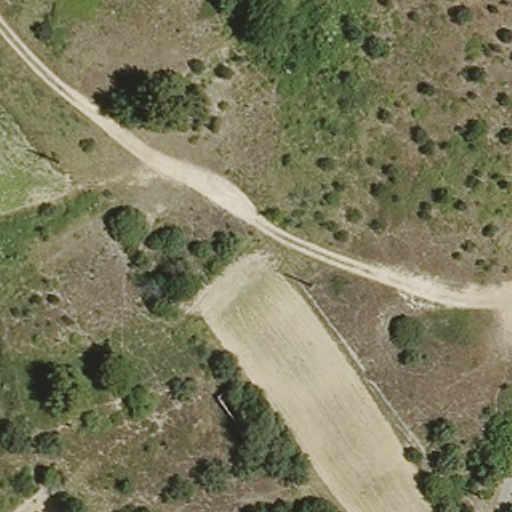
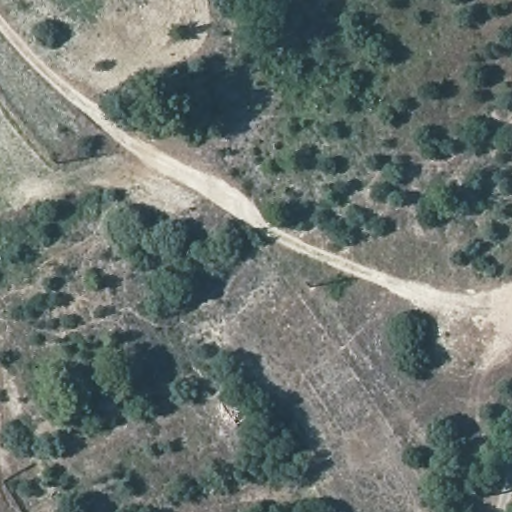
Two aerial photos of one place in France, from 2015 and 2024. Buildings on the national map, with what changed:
unchanged [(230,389),(252,424),(232,435),(212,403),(230,389)]

